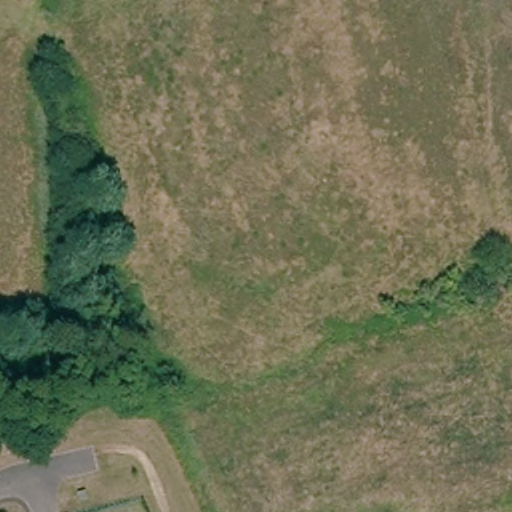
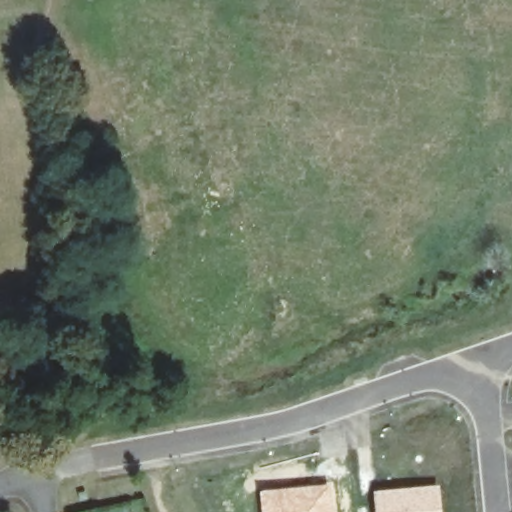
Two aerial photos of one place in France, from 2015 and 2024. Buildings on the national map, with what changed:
new [(335,512),(261,512),(259,490),(333,482),(335,512)]
new [(442,512),(374,512),(373,490),(440,484),(442,512)]
unchanged [(83,493),(85,502),(77,503),(75,496),(83,493)]

